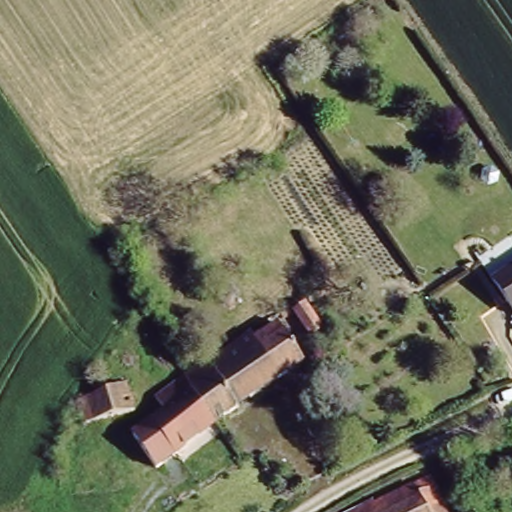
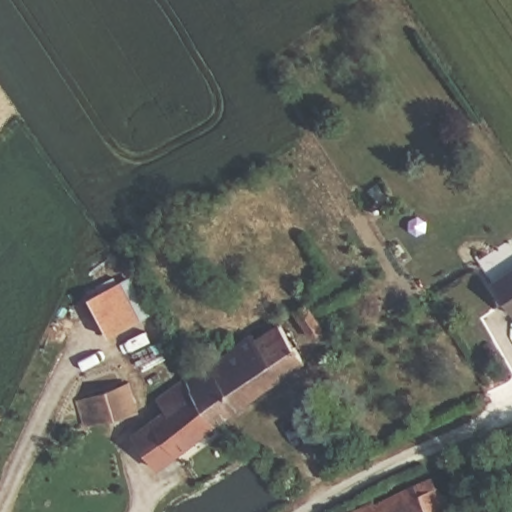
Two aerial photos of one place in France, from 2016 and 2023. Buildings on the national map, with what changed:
unchanged [(512,308),(494,284),(512,271),(512,308)]
new [(123,281),(143,318),(111,335),(91,298),(123,281)]
unchanged [(309,305),(326,330),(319,334),(316,336),(300,312),(299,312),(309,305)]
unchanged [(183,376),(186,373),(208,360),(209,362),(251,335),(253,333),(257,337),(280,322),(304,361),(213,420),(183,376)]
unchanged [(213,420),(175,445),(181,453),(156,468),(133,432),(167,411),(156,393),(183,376),(213,420)]
unchanged [(81,401),(132,386),(139,411),(89,425),(81,401)]
unchanged [(374,505),(429,477),(447,512),(350,512),(372,501),(374,505)]

